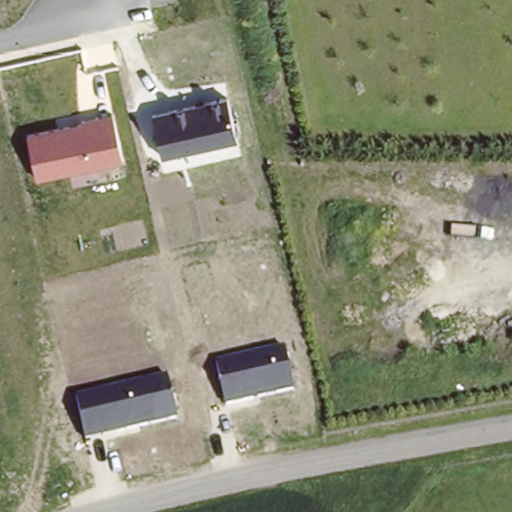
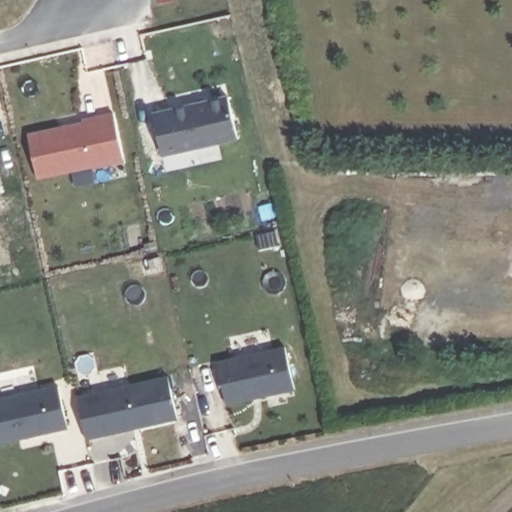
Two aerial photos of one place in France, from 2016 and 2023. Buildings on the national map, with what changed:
unchanged [(152,112),(226,95),(235,139),(162,155),(152,112)]
unchanged [(123,160),(36,180),(27,132),(115,114),(123,160)]
unchanged [(217,362),(283,346),(292,389),(225,405),(217,362)]
unchanged [(77,397),(166,376),(175,418),(86,439),(77,397)]
new [(56,385),(66,428),(0,445),(0,398),(56,385)]

